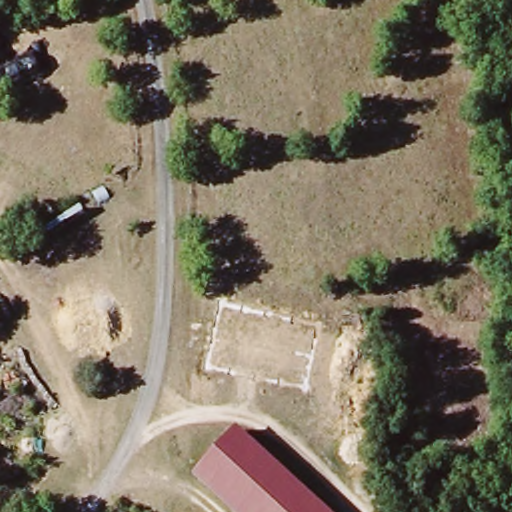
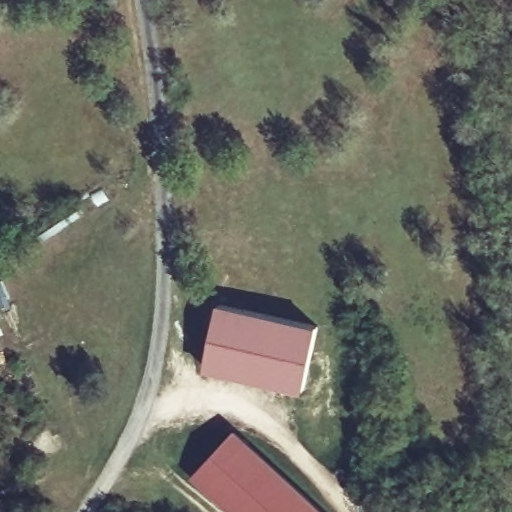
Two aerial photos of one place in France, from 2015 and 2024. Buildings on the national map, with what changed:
new [(320,326),(307,392),(204,369),(218,303),(320,326)]
unchanged [(326,512),(236,512),(218,496),(196,476),(208,463),(237,431),(326,512)]

